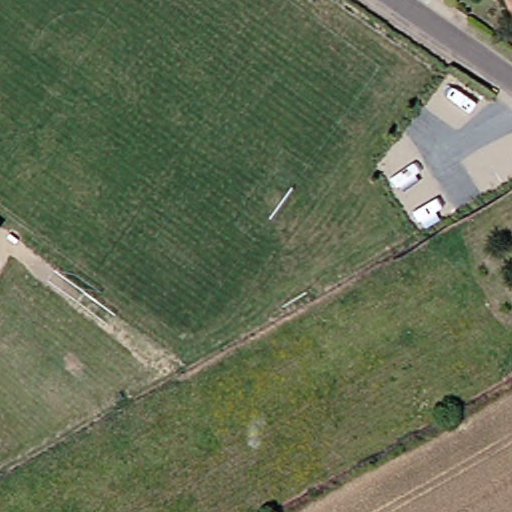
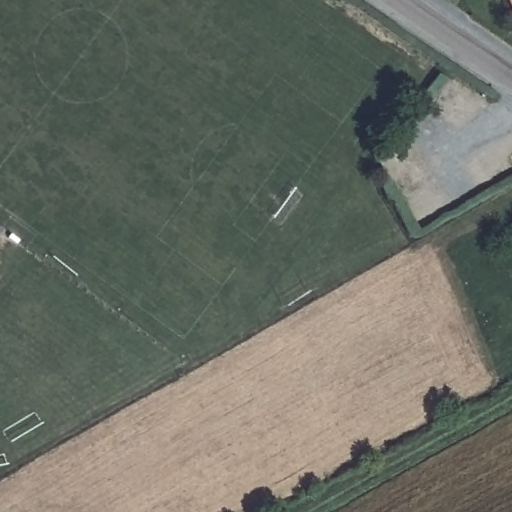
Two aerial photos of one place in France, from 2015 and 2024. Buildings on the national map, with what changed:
unchanged [(504,0),(512,0),(512,19),(506,5),(504,0)]

